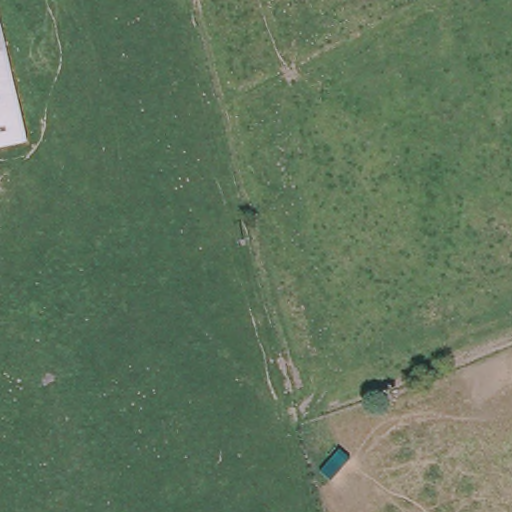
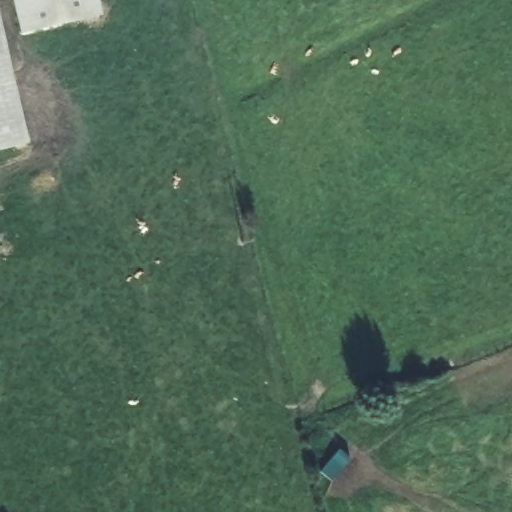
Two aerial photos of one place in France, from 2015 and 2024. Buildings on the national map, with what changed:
new [(21,34),(13,0),(98,0),(102,15),(21,34)]
unchanged [(27,143),(0,150),(0,25),(2,24),(27,143)]

